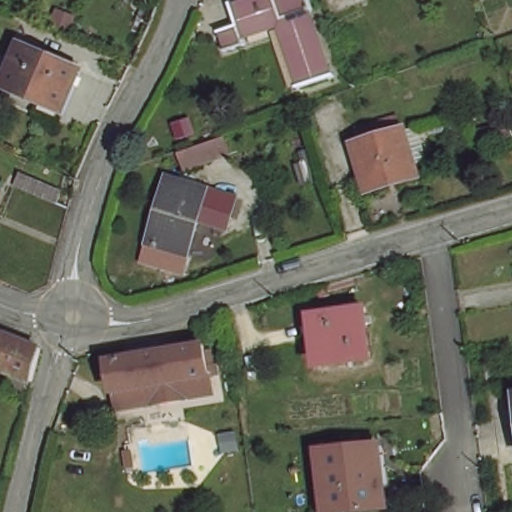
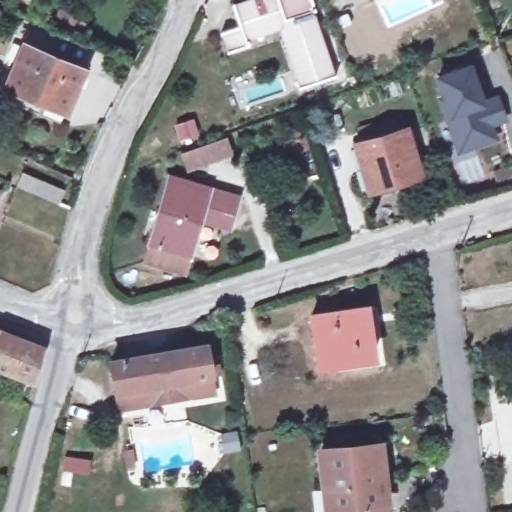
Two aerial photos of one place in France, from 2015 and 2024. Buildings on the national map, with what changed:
unchanged [(227,58),(220,35),(241,28),(235,4),(248,0),(314,0),(340,83),(300,95),(281,34),(247,45),(248,51),(227,58)]
unchanged [(81,67),(64,107),(7,82),(23,42),(81,67)]
new [(467,66),(480,103),(494,98),(502,120),(488,125),(492,139),(470,147),(466,136),(452,140),(438,99),(442,98),(435,77),(467,66)]
unchanged [(414,172),(365,188),(353,147),(400,131),(414,172)]
unchanged [(232,157),(190,176),(180,156),(221,136),(232,157)]
unchanged [(148,238),(168,173),(240,195),(229,229),(200,220),(190,252),(148,238)]
unchanged [(367,312),(372,358),(317,367),(311,321),(367,312)]
unchanged [(0,333),(38,348),(29,384),(0,371),(0,333)]
unchanged [(194,343),(199,362),(209,359),(212,369),(202,371),(207,389),(115,415),(102,369),(194,343)]
unchanged [(383,507),(338,512),(323,512),(317,454),(376,449),(383,507)]

